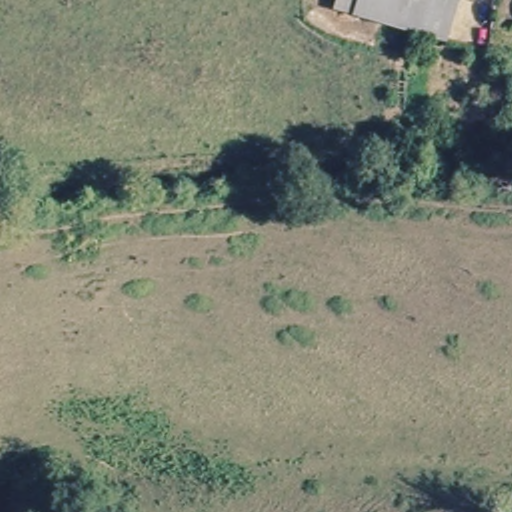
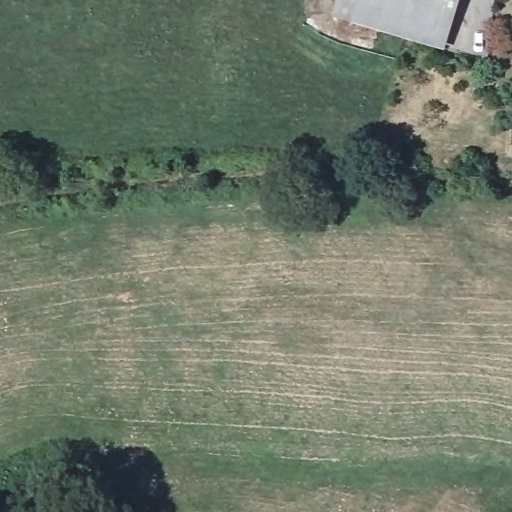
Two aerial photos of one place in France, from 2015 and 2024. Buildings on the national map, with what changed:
unchanged [(355,15),(360,0),(456,0),(443,43),(355,15)]

